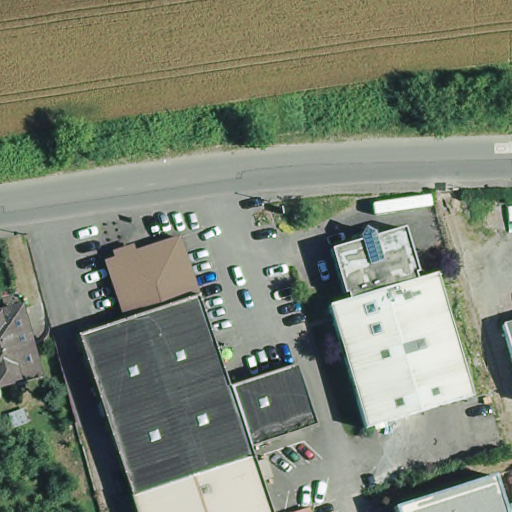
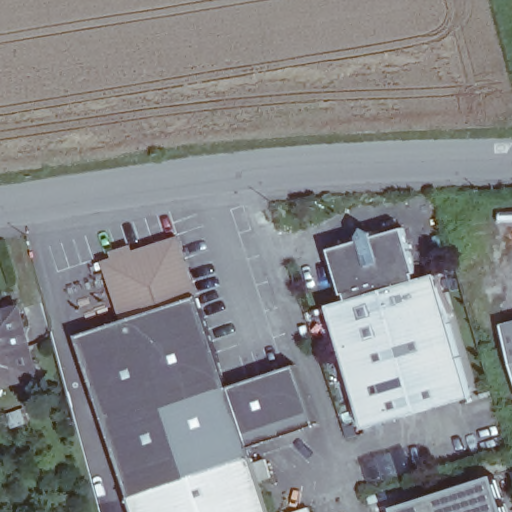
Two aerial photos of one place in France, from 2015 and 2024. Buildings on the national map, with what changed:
unchanged [(472,396),(366,428),(328,306),(349,299),(346,292),(344,293),(331,248),(359,239),(357,234),(364,226),(374,231),(374,235),(404,226),(417,270),(414,272),(417,279),(436,273),(472,396)]
unchanged [(124,319),(105,261),(179,236),(199,295),(124,319)]
unchanged [(77,336),(124,319),(199,295),(230,386),(243,382),(263,442),(245,447),(249,458),(131,496),(77,336)]
unchanged [(31,375),(0,385),(0,315),(14,311),(31,375)]
unchanged [(504,324),(512,322),(512,350),(504,324)]
unchanged [(296,365),(316,424),(296,431),(279,371),(296,365)]
unchanged [(279,371),(296,431),(263,442),(243,382),(279,371)]
unchanged [(249,458),(259,482),(152,512),(137,512),(131,496),(249,458)]
unchanged [(276,478),(264,481),(257,462),(269,458),(276,478)]
unchanged [(506,512),(395,512),(394,507),(494,475),(506,512)]
unchanged [(270,512),(152,512),(259,482),(270,512)]
unchanged [(313,512),(289,512),(311,505),(313,512)]

